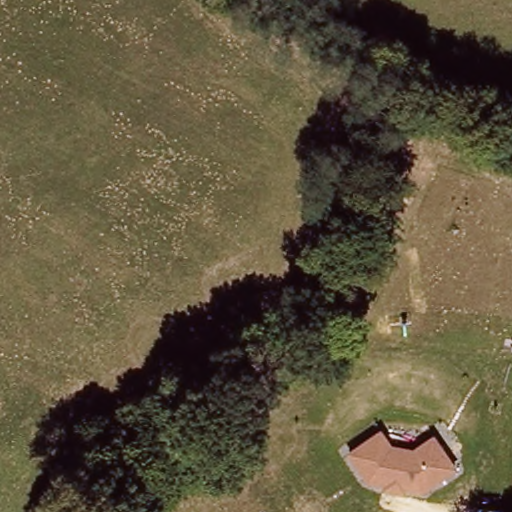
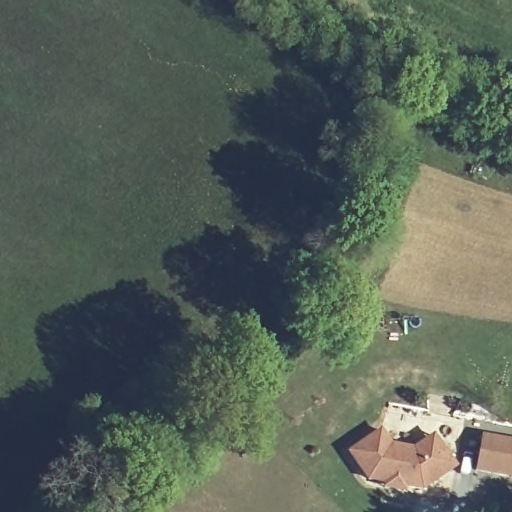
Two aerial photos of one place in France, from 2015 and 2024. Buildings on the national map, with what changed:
unchanged [(460,468),(426,491),(410,489),(410,493),(383,489),(383,483),(366,480),(348,452),(384,428),(395,443),(416,446),(435,433),(460,468)]
new [(474,475),(480,436),(512,441),(512,482),(474,475)]

